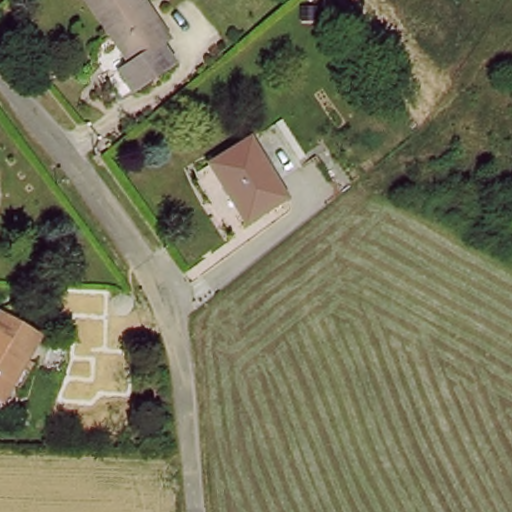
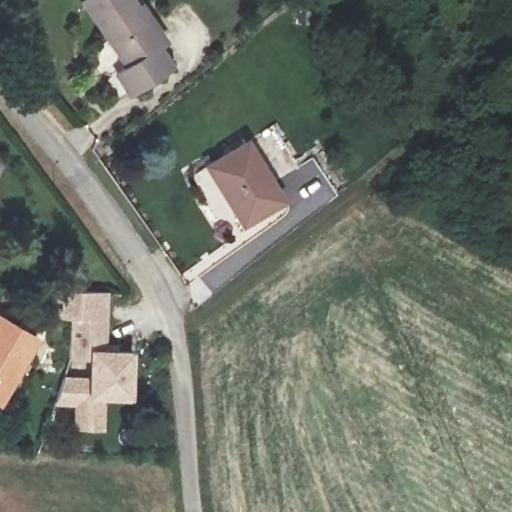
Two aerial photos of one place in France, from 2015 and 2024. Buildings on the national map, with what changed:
unchanged [(136,93),(120,75),(130,66),(78,7),(88,0),(125,0),(131,7),(136,3),(166,37),(157,45),(173,62),(136,93)]
unchanged [(286,193),(246,224),(208,177),(246,146),(286,193)]
new [(131,400),(106,398),(105,431),(73,430),(74,406),(55,406),(64,375),(77,376),(78,359),(68,359),(70,318),(51,319),(52,291),(108,292),(106,350),(131,351),(131,400)]
unchanged [(13,404),(0,401),(0,322),(35,334),(13,404)]

